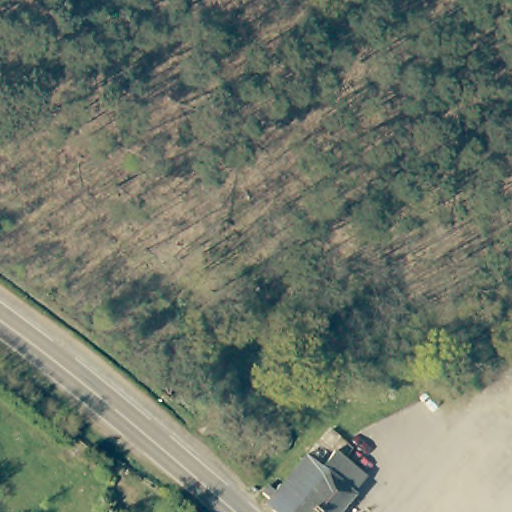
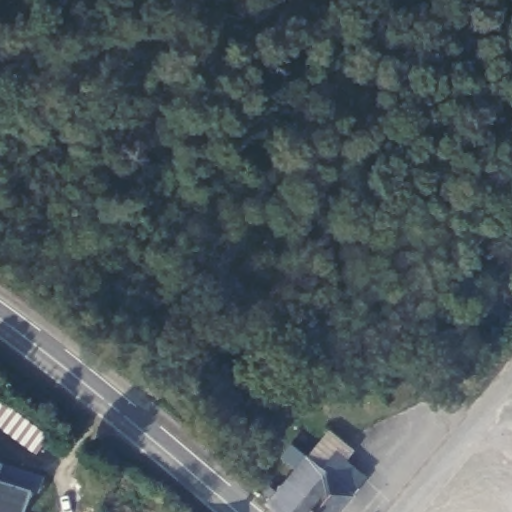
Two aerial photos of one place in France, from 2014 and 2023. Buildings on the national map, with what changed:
unchanged [(339,472),(345,466),(360,477),(352,485),(359,492),(340,512),(284,512),(270,499),(274,495),(313,453),(339,472)]
new [(1,461),(0,463),(0,460),(1,461)]
new [(8,480),(13,465),(41,473),(36,489),(29,487),(21,512),(0,512),(0,477),(8,480)]
demolished [(202,512),(196,512),(197,509),(202,512)]

